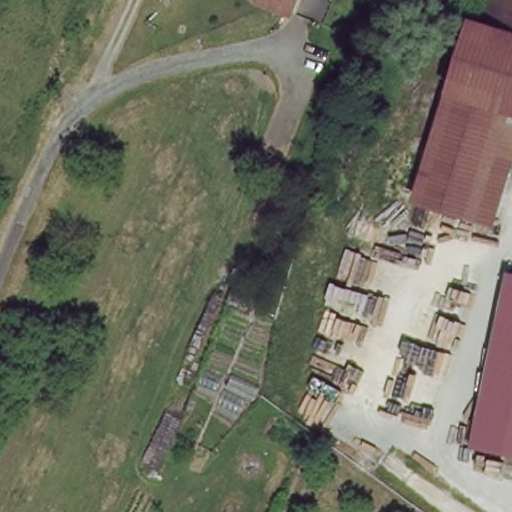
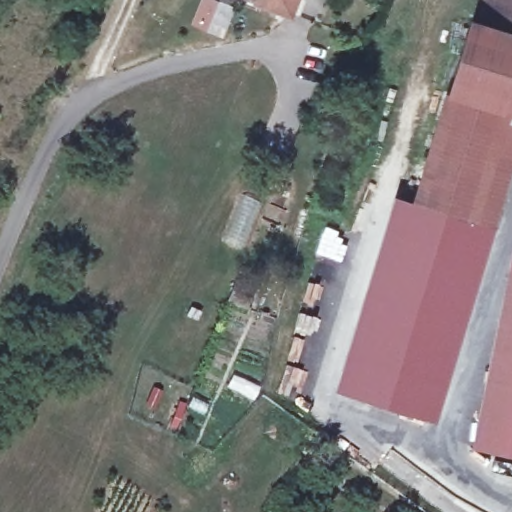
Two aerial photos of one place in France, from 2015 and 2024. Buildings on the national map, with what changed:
unchanged [(298,13),(264,0),(302,0),(298,13)]
unchanged [(512,19),(475,7),(477,0),(512,0),(512,19)]
new [(512,28),(472,16),(475,7),(512,19),(512,28)]
unchanged [(475,215),(420,199),(417,195),(454,77),(459,63),(472,16),(512,28),(512,113),(507,111),(475,215)]
new [(475,215),(507,111),(512,113),(512,175),(497,226),(437,421),(335,389),(395,195),(414,201),(417,195),(420,199),(475,215)]
unchanged [(512,274),(512,453),(474,445),(510,273),(512,274)]
unchanged [(259,294),(251,318),(234,311),(243,289),(259,294)]

